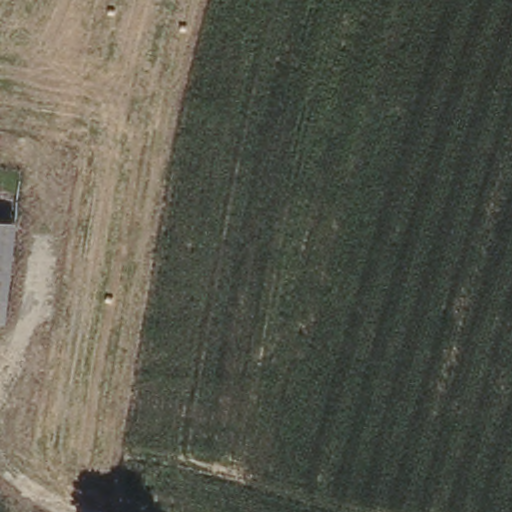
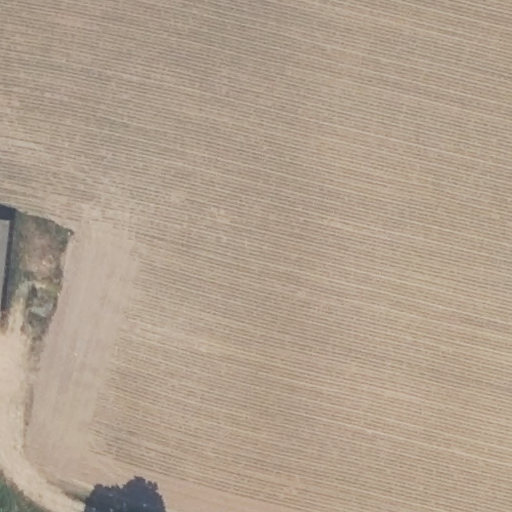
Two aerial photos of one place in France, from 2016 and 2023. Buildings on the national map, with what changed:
unchanged [(0,322),(0,217),(23,219),(9,323),(0,322)]

